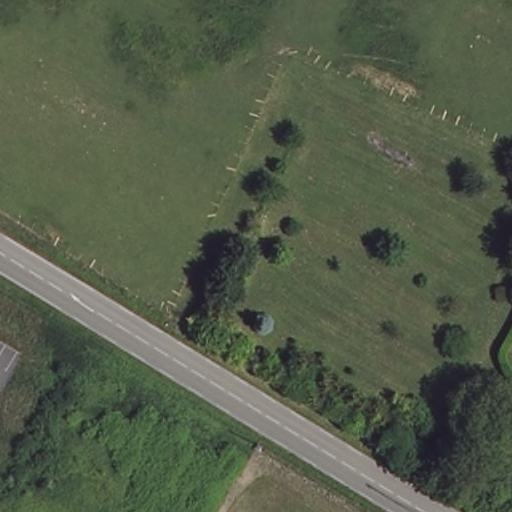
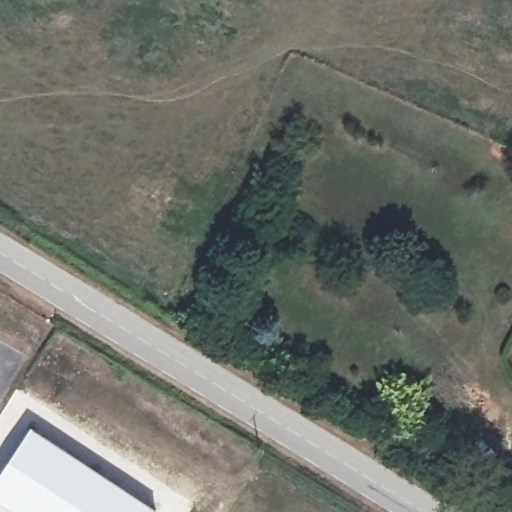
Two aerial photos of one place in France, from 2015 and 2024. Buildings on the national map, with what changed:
new [(156,509),(154,512),(14,512),(0,503),(0,469),(29,425),(156,509)]

